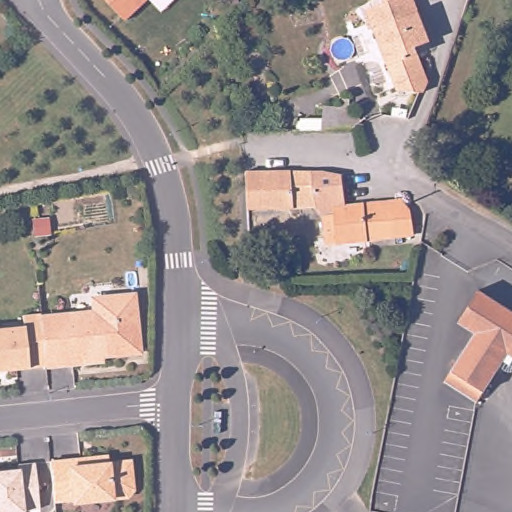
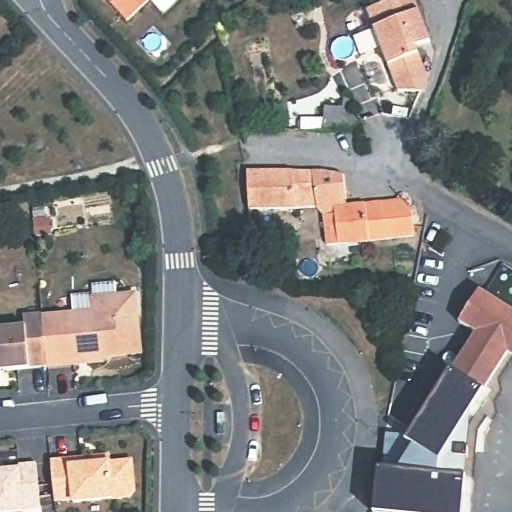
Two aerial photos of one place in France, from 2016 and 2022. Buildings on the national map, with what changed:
unchanged [(123,19),(105,0),(144,0),(123,19)]
unchanged [(395,0),(414,0),(430,42),(416,48),(428,82),(425,92),(420,92),(399,92),(369,9),(395,0)]
unchanged [(415,156),(417,150),(439,159),(436,168),(415,156)]
unchanged [(251,210),(249,173),(292,171),(336,174),(345,176),(345,194),(341,194),(342,207),(347,206),(402,200),(404,202),(409,212),(412,222),(414,233),(414,237),(325,247),(322,218),(318,208),(296,208),(251,210)]
unchanged [(479,392),(448,366),(482,321),(466,309),(491,276),(512,292),(512,350),(479,392)]
unchanged [(42,315),(96,309),(94,296),(135,292),(140,350),(77,356),(78,361),(47,364),(42,315)]
unchanged [(47,364),(0,368),(0,326),(25,323),(24,313),(42,312),(42,315),(47,364)]
new [(450,367),(479,392),(467,417),(473,422),(464,512),(375,512),(378,471),(384,432),(406,438),(450,367)]
unchanged [(105,462),(140,459),(143,488),(137,496),(83,501),(82,497),(64,499),(60,460),(104,455),(105,462)]
unchanged [(18,463),(35,461),(39,506),(23,507),(23,509),(0,512),(0,469),(18,467),(18,463)]

